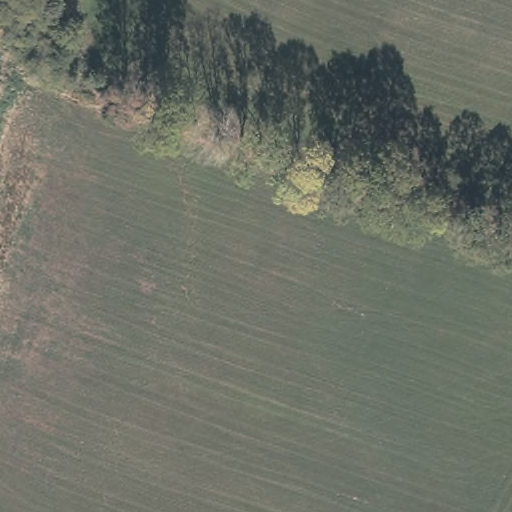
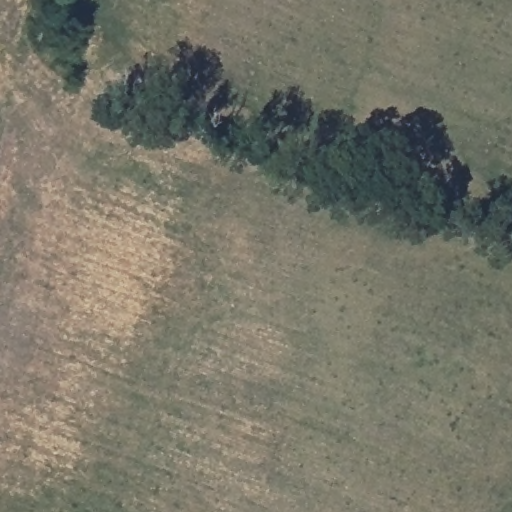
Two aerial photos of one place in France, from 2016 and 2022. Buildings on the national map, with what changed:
[]

